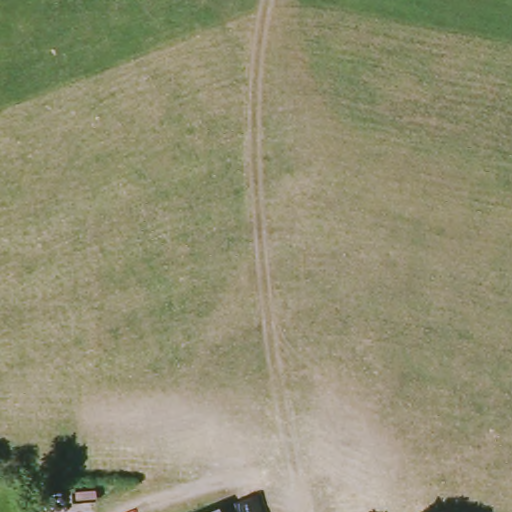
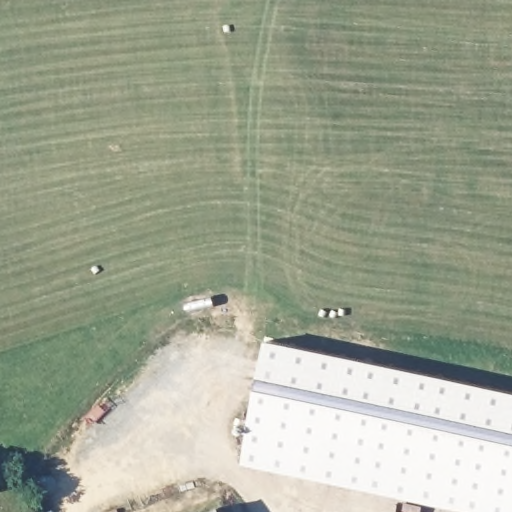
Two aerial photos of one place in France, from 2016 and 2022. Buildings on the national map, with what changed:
new [(267,341),(512,392),(512,512),(497,512),(244,459),(267,341)]
unchanged [(220,511),(221,512),(217,512),(220,511)]

